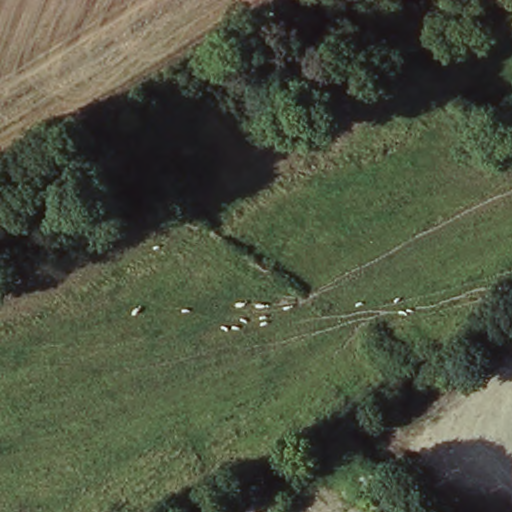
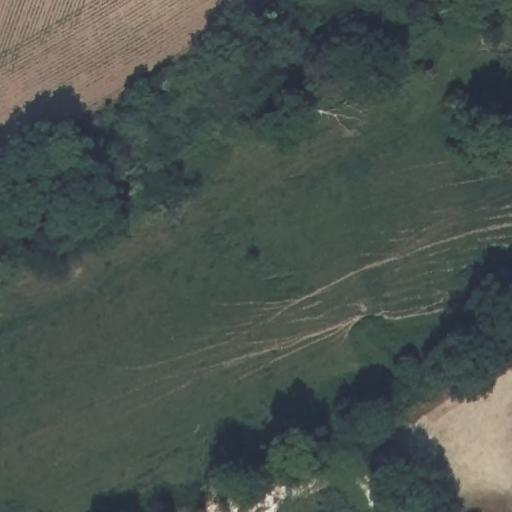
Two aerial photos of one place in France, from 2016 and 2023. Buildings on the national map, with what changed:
[]

